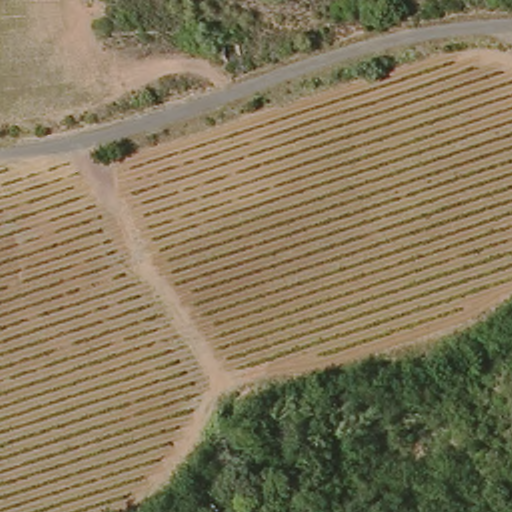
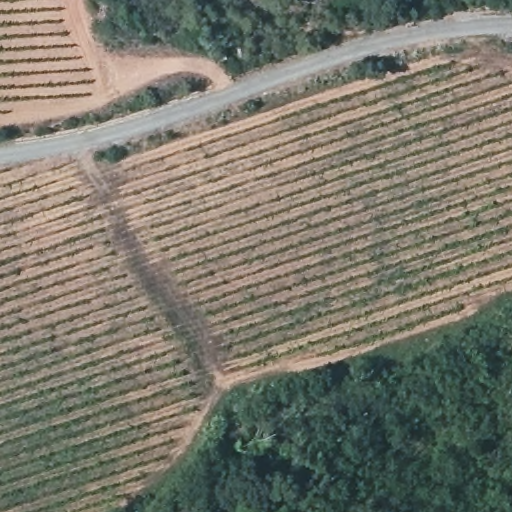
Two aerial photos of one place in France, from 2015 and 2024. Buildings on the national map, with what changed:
unchanged [(248,40),(247,62),(230,62),(230,40),(248,40)]

